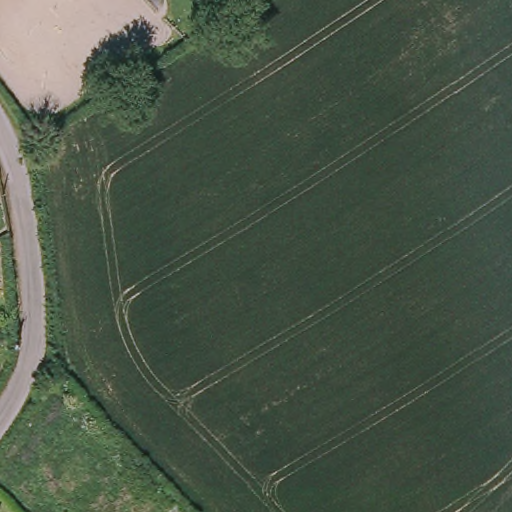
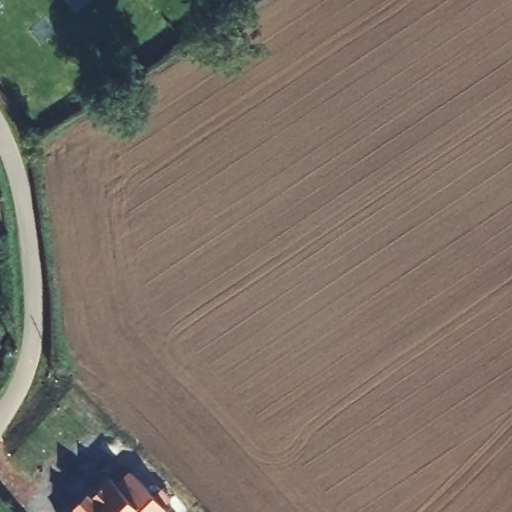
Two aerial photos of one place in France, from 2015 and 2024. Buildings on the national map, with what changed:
new [(101,505),(98,501),(119,482),(125,490),(139,476),(173,512),(94,512),(101,505)]
new [(85,507),(90,512),(80,512),(85,507)]

